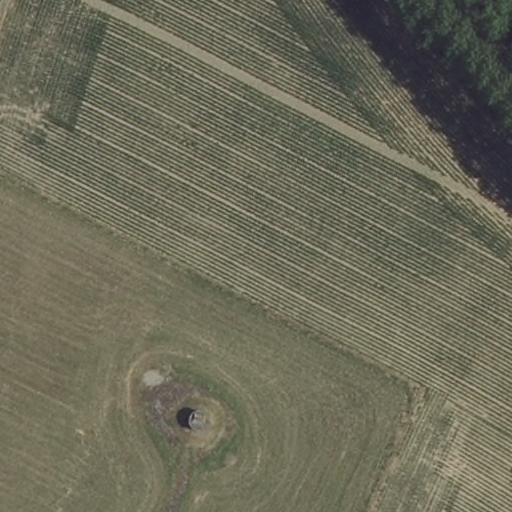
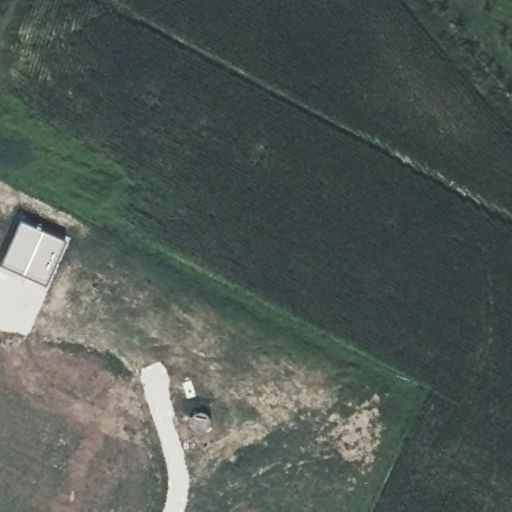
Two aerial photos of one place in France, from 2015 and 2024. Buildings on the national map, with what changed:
new [(18,221),(66,242),(45,288),(0,268),(0,262),(18,221)]
unchanged [(192,420),(193,414),(198,410),(205,410),(211,415),(211,422),(208,426),(200,428),(195,426),(192,420)]

